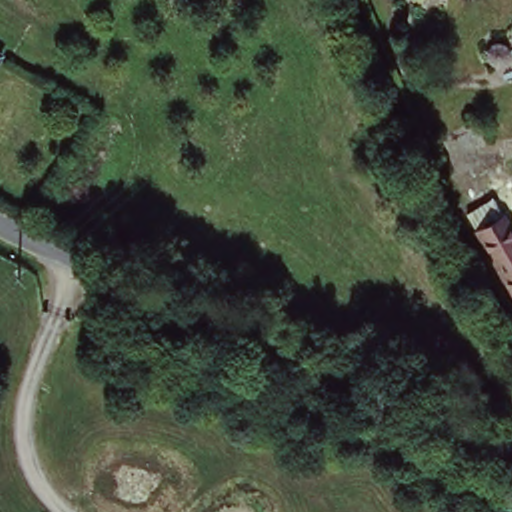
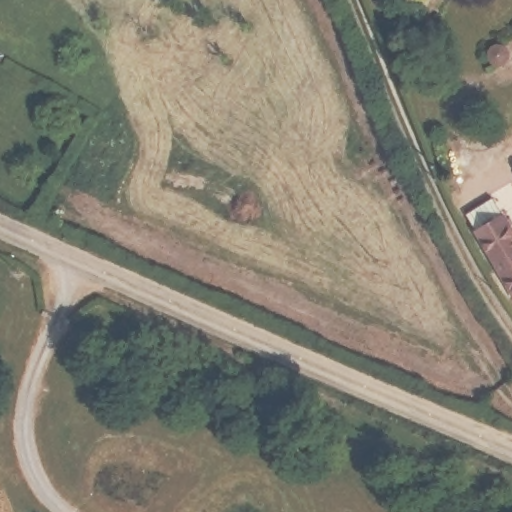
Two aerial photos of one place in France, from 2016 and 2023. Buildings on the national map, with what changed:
unchanged [(0,67),(0,47),(10,54),(0,67)]
unchanged [(512,224),(512,272),(503,277),(465,215),(489,200),(506,227),(512,224)]

